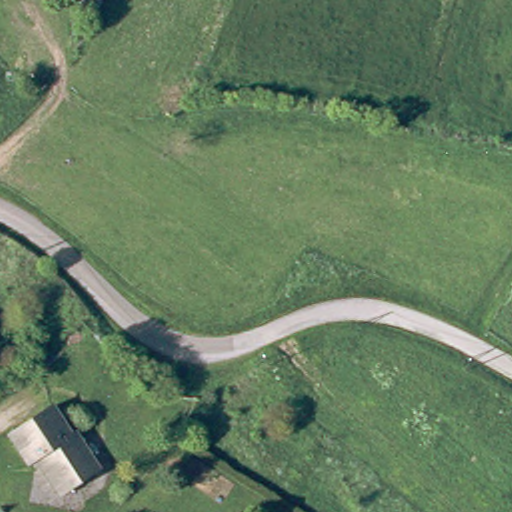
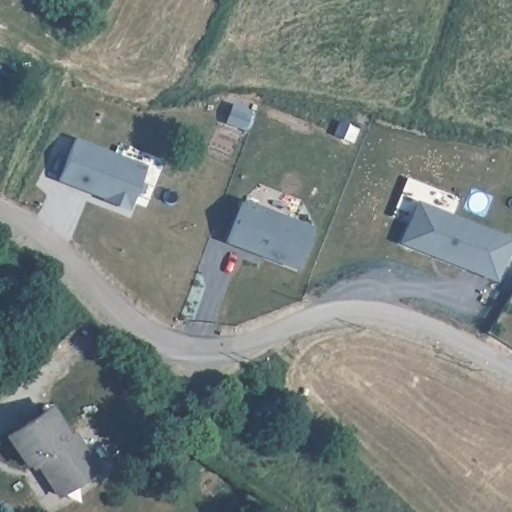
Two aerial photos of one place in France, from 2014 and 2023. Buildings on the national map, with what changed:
new [(146,164),(129,209),(56,182),(74,136),(146,164)]
new [(313,227),(296,271),(225,244),(241,201),(313,227)]
new [(512,248),(497,282),(399,244),(416,201),(512,239),(512,248)]
unchanged [(73,436),(78,433),(80,438),(89,439),(88,449),(101,469),(79,484),(78,492),(69,491),(64,494),(43,464),(39,467),(35,462),(32,464),(13,434),(55,408),(73,436)]

